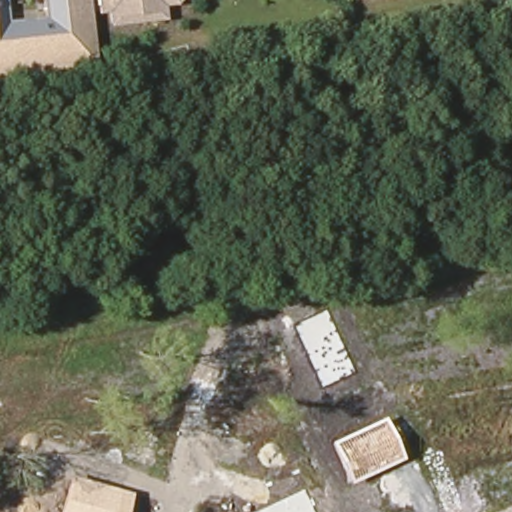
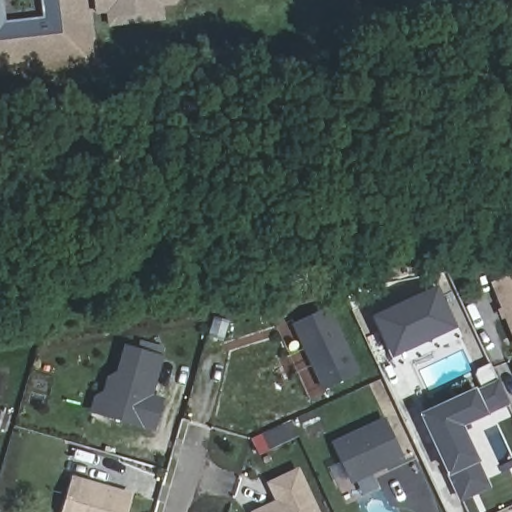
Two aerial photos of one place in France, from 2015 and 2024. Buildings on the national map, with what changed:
unchanged [(0,76),(0,0),(6,0),(9,22),(45,17),(43,0),(89,0),(98,64),(0,76)]
unchanged [(172,12),(131,16),(130,4),(113,6),(112,0),(171,0),(172,12)]
new [(501,320),(498,310),(502,308),(492,282),(512,274),(512,337),(505,318),(501,320)]
new [(395,366),(392,357),(373,317),(437,286),(457,328),(462,337),(395,366)]
unchanged [(322,387),(294,325),(327,310),(356,372),(322,387)]
new [(155,431),(91,413),(95,397),(103,392),(107,377),(118,372),(124,346),(164,357),(154,394),(165,397),(155,431)]
new [(499,382),(509,405),(486,416),(464,426),(479,462),(489,487),(459,501),(448,476),(419,414),(475,391),(482,389),(476,374),(479,367),(492,363),(499,382)]
unchanged [(404,460),(351,484),(331,442),(385,417),(404,460)]
new [(267,482),(299,467),(320,512),(256,512),(275,502),(267,482)]
unchanged [(61,512),(71,476),(133,492),(127,512),(61,512)]

